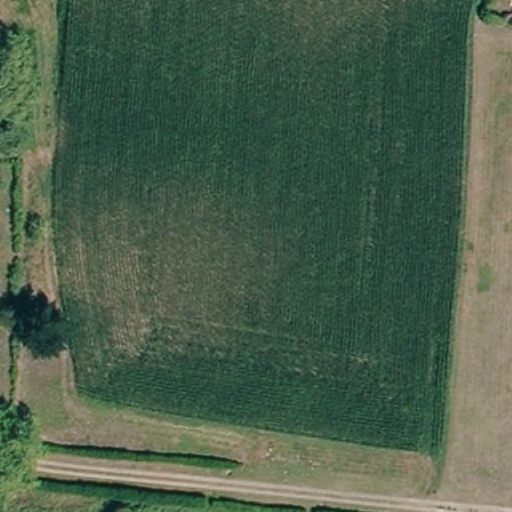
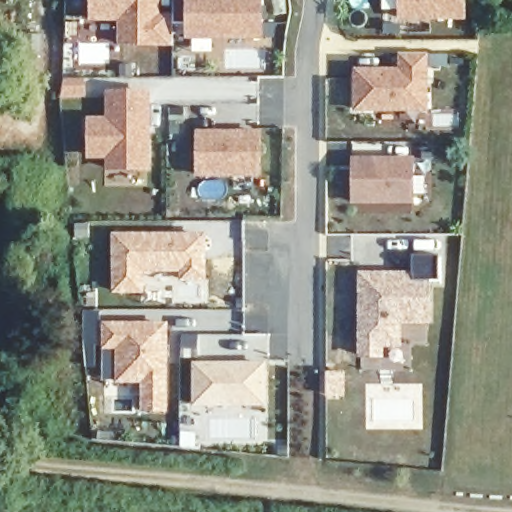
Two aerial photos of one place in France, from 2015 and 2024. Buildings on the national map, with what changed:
new [(187,40),(186,25),(174,24),(174,48),(117,46),(117,23),(90,23),(89,0),(161,0),(161,14),(174,14),(174,0),(264,0),(265,41),(187,40)]
new [(399,0),(467,0),(467,20),(400,21),(399,0)]
new [(354,112),(355,68),(398,69),(399,55),(430,54),(448,56),(448,66),(430,66),(430,113),(354,112)]
new [(106,172),(107,159),(87,158),(88,117),(105,117),(105,90),(151,90),(151,172),(106,172)]
new [(197,178),(196,130),(262,130),(262,178),(197,178)]
new [(352,205),(352,157),(415,157),(415,206),(352,205)]
new [(112,293),(113,233),(207,234),(207,283),(180,283),(180,273),(145,273),(145,295),(112,293)]
new [(359,271),(412,271),(413,256),(440,254),(441,280),(431,280),(432,325),(402,325),(402,349),(385,349),(385,359),(358,359),(359,271)]
new [(142,413),(141,384),(116,384),(116,350),(102,350),(102,322),(169,321),(169,413),(142,413)]
new [(194,408),(194,361),(266,362),(266,407),(194,408)]

